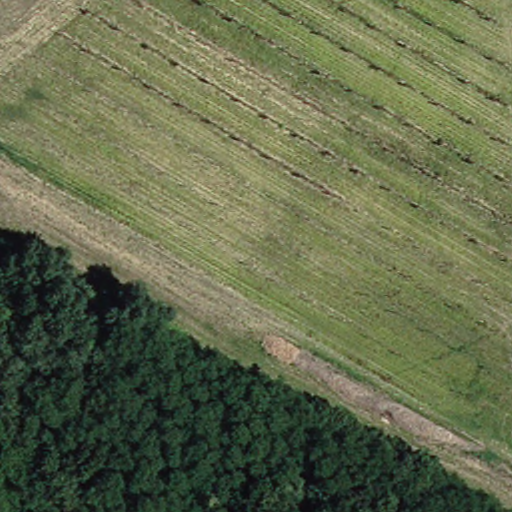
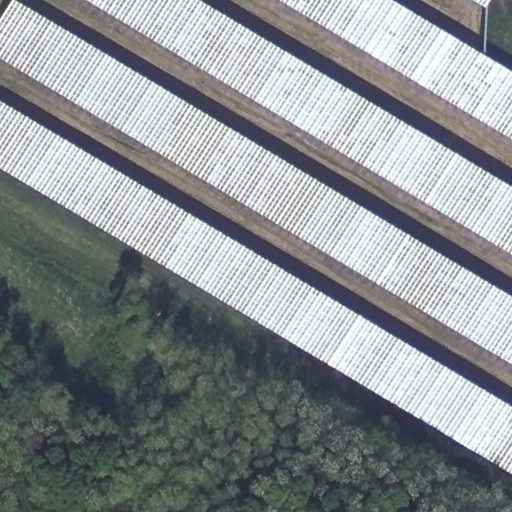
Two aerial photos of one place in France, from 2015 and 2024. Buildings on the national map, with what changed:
new [(0,58),(0,17),(10,0),(11,0),(512,300),(512,364),(0,58)]
new [(86,0),(195,0),(512,190),(512,255),(86,0)]
new [(280,0),(388,0),(512,74),(512,139),(280,0)]
new [(486,6),(474,0),(489,0),(486,6)]
new [(0,103),(512,410),(512,474),(0,168),(0,103)]

